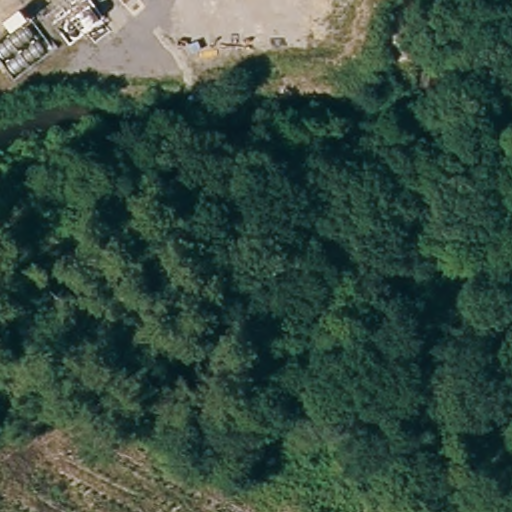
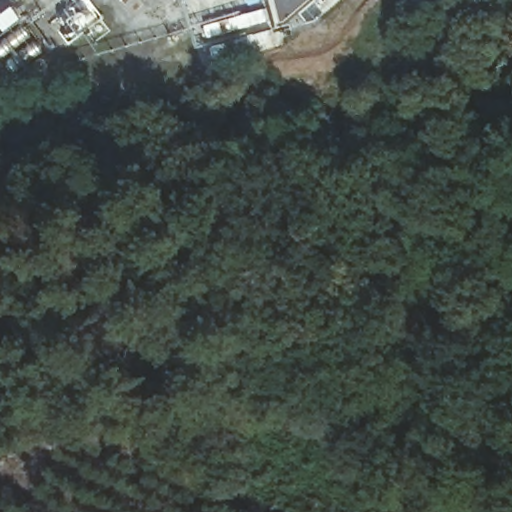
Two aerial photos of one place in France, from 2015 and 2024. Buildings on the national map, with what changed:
[]

